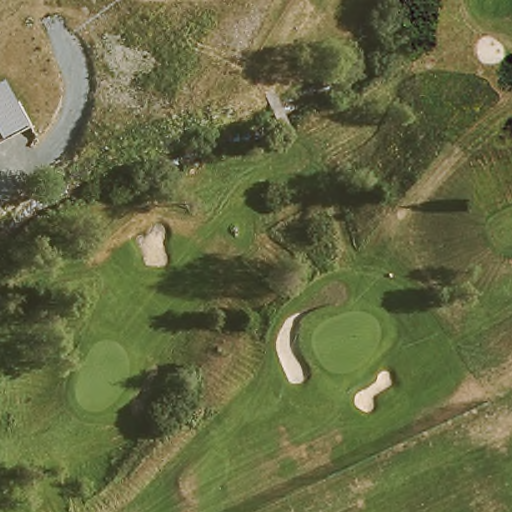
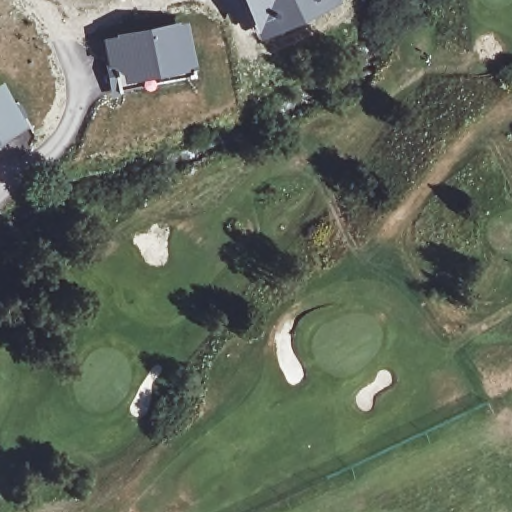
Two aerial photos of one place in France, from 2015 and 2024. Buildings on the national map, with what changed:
new [(254,38),(236,0),(335,0),(336,0),(254,38)]
new [(105,66),(108,65),(103,38),(115,35),(115,34),(178,20),(178,23),(186,22),(194,66),(196,76),(120,90),(121,95),(111,97),(105,66)]
unchanged [(0,140),(0,82),(3,81),(25,127),(0,140)]

